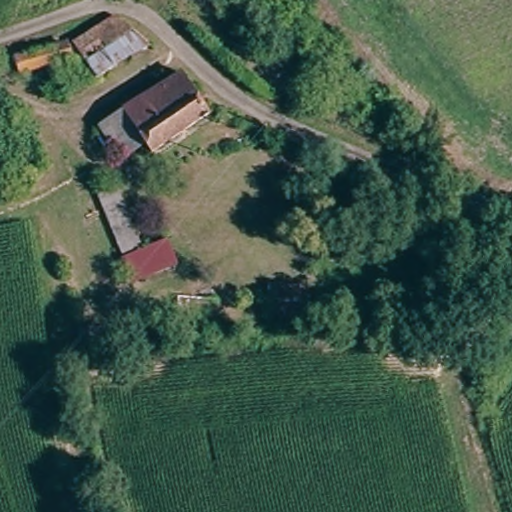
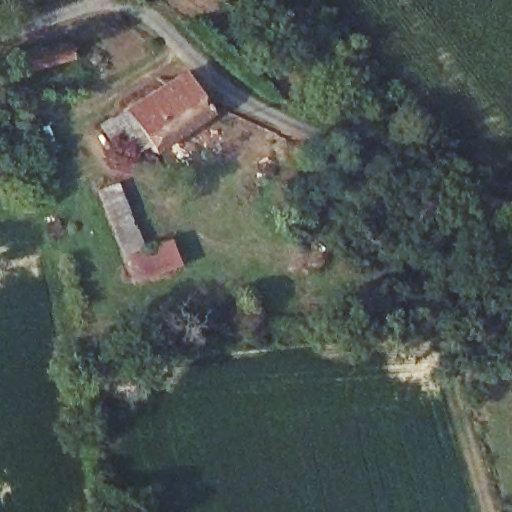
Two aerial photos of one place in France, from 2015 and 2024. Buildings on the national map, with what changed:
unchanged [(84,57),(18,70),(15,49),(70,36),(114,12),(131,22),(147,42),(96,75),(84,57)]
unchanged [(104,117),(121,109),(165,85),(161,74),(174,67),(181,63),(202,105),(209,117),(145,150),(127,160),(104,117)]
unchanged [(100,182),(120,176),(138,240),(164,233),(171,262),(125,275),(100,182)]
unchanged [(311,285),(308,318),(270,314),(273,280),(311,285)]
unchanged [(162,325),(165,290),(180,292),(203,294),(201,326),(184,326),(162,325)]

